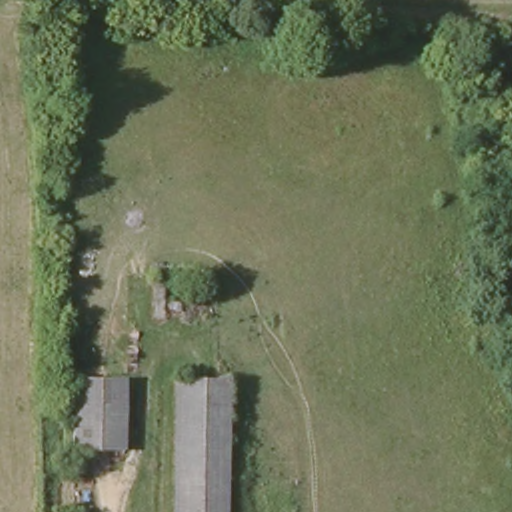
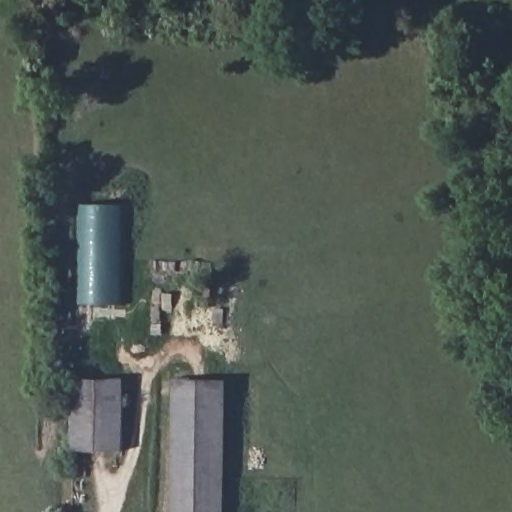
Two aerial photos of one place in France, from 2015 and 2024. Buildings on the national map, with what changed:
new [(80,205),(124,205),(121,305),(78,304),(80,205)]
unchanged [(222,512),(171,512),(174,374),(225,375),(222,512)]
unchanged [(72,453),(74,379),(122,380),(122,452),(72,453)]

